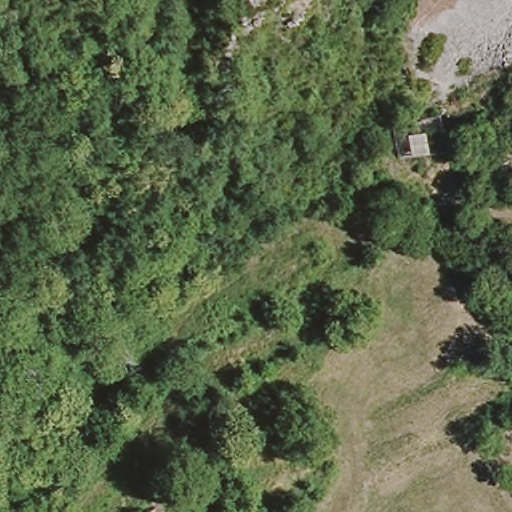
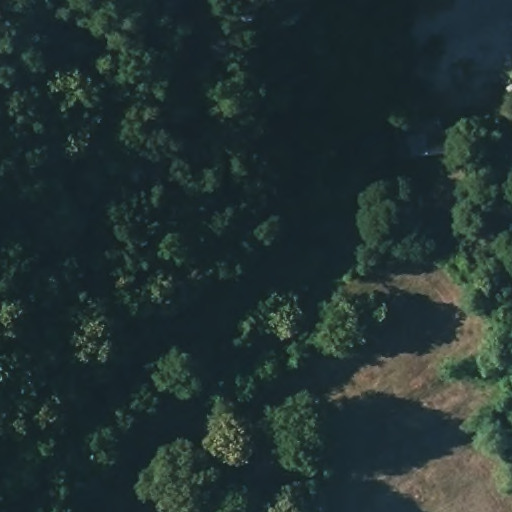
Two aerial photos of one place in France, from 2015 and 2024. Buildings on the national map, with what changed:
unchanged [(438,121),(449,158),(402,161),(393,130),(438,121)]

